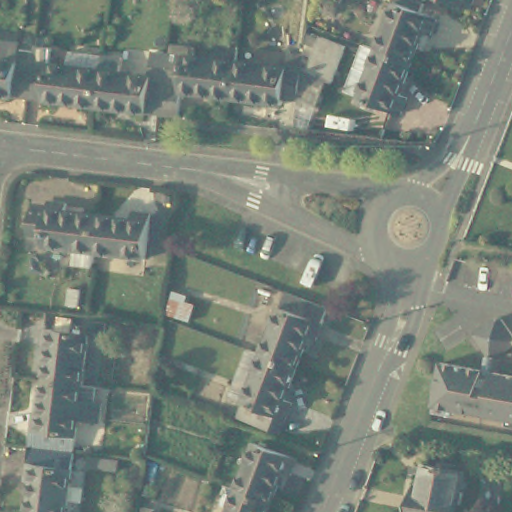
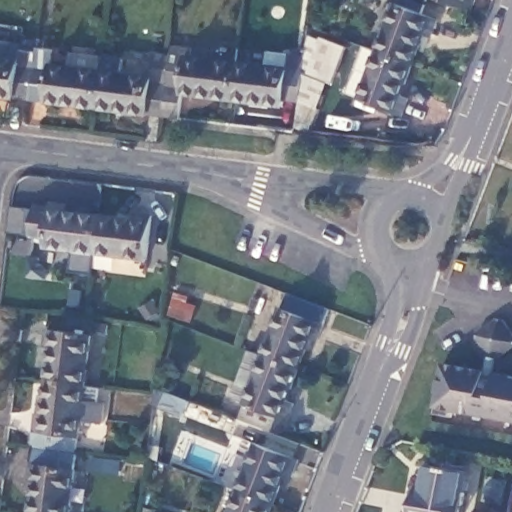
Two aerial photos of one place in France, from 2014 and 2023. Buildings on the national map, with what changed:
unchanged [(407,0),(440,13),(433,31),(422,27),(410,55),(380,41),(397,0),(407,0)]
unchanged [(444,0),(467,0),(464,8),(444,0)]
unchanged [(346,44),(334,73),(309,62),(322,34),(346,44)]
unchanged [(410,55),(396,89),(405,93),(399,108),(375,99),(374,102),(357,95),(380,41),(410,55)]
unchanged [(285,62),(287,50),(306,51),(302,95),(282,94),(281,99),(234,95),(238,58),(285,62)]
unchanged [(171,51),(238,58),(234,95),(186,90),(184,113),(164,111),(168,82),(171,51)]
unchanged [(21,68),(38,70),(35,98),(0,94),(0,57),(22,59),(21,68)]
unchanged [(54,72),(55,63),(103,69),(99,104),(35,98),(38,70),(54,72)]
unchanged [(150,74),(149,80),(168,82),(164,111),(99,104),(103,69),(150,74)]
unchanged [(94,250),(26,242),(30,204),(48,206),(49,198),(65,199),(64,210),(99,214),(94,250)]
unchanged [(131,218),(133,210),(148,212),(143,256),(94,250),(99,214),(131,218)]
unchanged [(332,308),(318,344),(311,341),(299,371),(266,358),(292,291),(332,308)]
unchanged [(56,334),(48,333),(49,319),(91,323),(86,372),(53,369),(56,334)]
unchanged [(512,337),(512,355),(500,363),(491,362),(479,344),(480,337),(499,324),(505,325),(512,337)]
unchanged [(266,358),(243,417),(221,408),(246,349),(266,358)]
unchanged [(299,371),(288,400),(295,402),(283,433),(243,417),(266,358),(299,371)]
unchanged [(442,404),(450,361),(512,375),(512,419),(442,404)]
unchanged [(86,372),(78,438),(36,433),(39,405),(49,406),(53,369),(86,372)]
unchanged [(40,469),(31,468),(36,433),(78,438),(69,506),(35,501),(40,469)]
unchanged [(257,442),(299,458),(292,475),(284,472),(272,500),(239,487),(257,442)]
unchanged [(464,475),(456,512),(408,512),(417,470),(424,471),(425,467),(464,475)]
unchanged [(272,500),(267,512),(229,512),(239,487),(272,500)]
unchanged [(69,506),(68,512),(34,512),(35,501),(69,506)]

